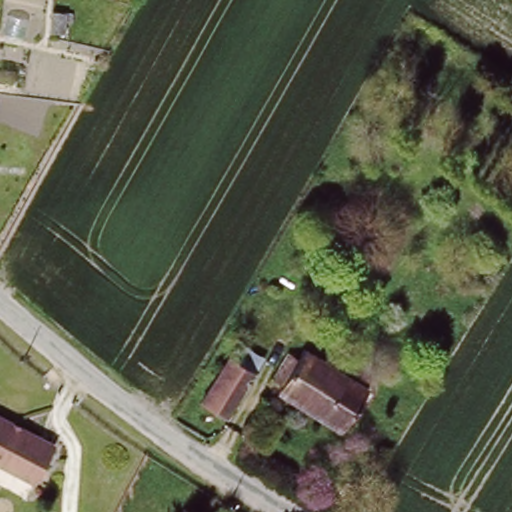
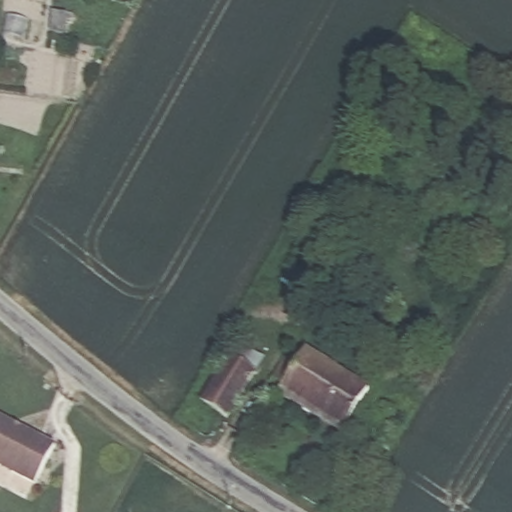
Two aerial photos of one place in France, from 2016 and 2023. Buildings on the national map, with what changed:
unchanged [(52,12),(64,13),(63,34),(50,32),(52,12)]
unchanged [(15,69),(13,86),(0,84),(0,67),(15,69)]
unchanged [(307,310),(321,318),(312,335),(298,326),(307,310)]
unchanged [(348,342),(354,346),(358,338),(365,342),(356,358),(343,350),(348,342)]
unchanged [(288,347),(301,356),(306,347),(368,383),(341,432),(276,395),(283,382),(271,372),(288,347)]
unchanged [(192,411),(199,398),(197,397),(225,352),(251,367),(223,413),(218,411),(211,422),(192,411)]
unchanged [(55,443),(35,482),(0,463),(0,415),(55,443)]

